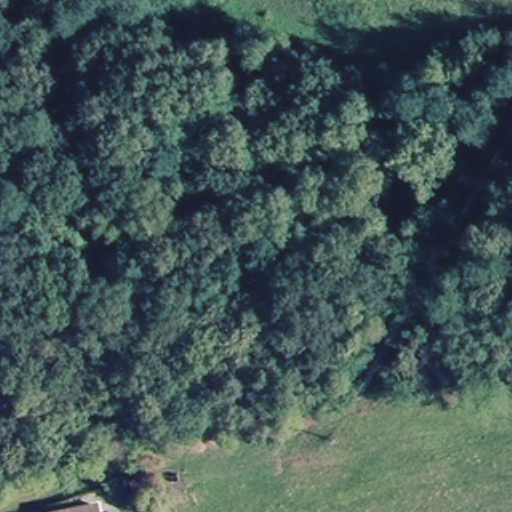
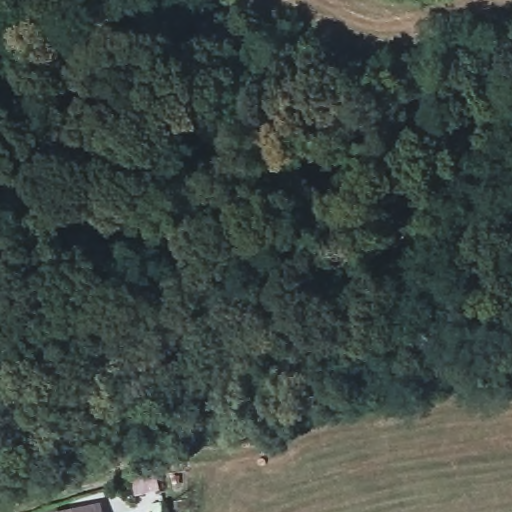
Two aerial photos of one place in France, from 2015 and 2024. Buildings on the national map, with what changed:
unchanged [(102,504),(103,512),(70,512),(75,511),(102,504)]

